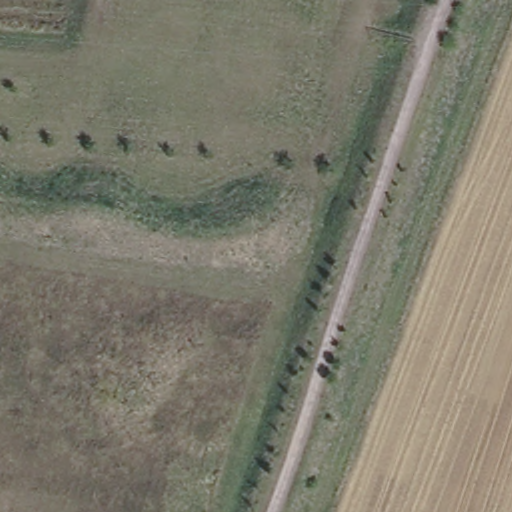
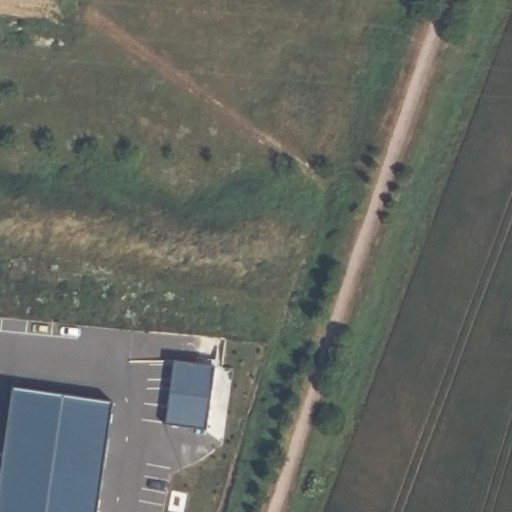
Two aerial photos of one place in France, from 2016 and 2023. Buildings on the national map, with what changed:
new [(214,357),(208,419),(164,415),(169,353),(214,357)]
new [(0,437),(6,389),(111,407),(98,512),(0,512),(0,437)]

